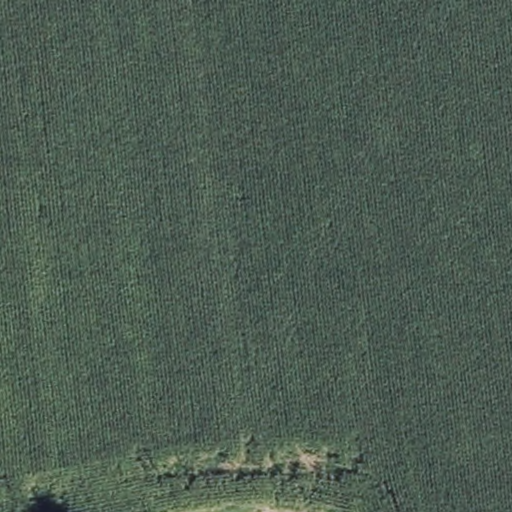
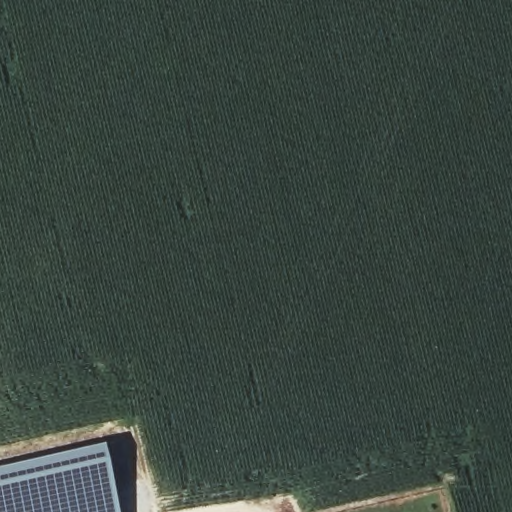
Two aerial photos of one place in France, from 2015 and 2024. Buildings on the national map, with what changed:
new [(118,512),(0,512),(0,465),(101,442),(118,512)]

